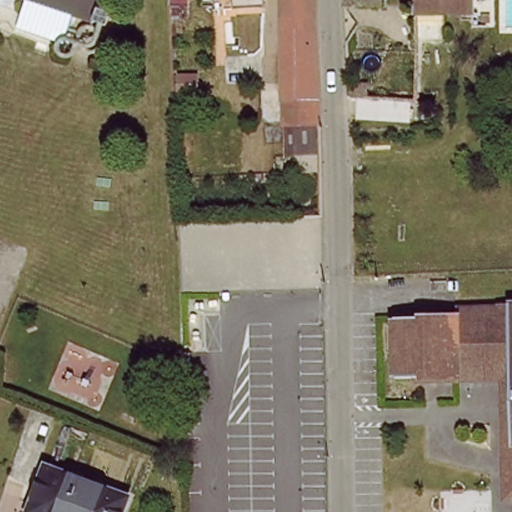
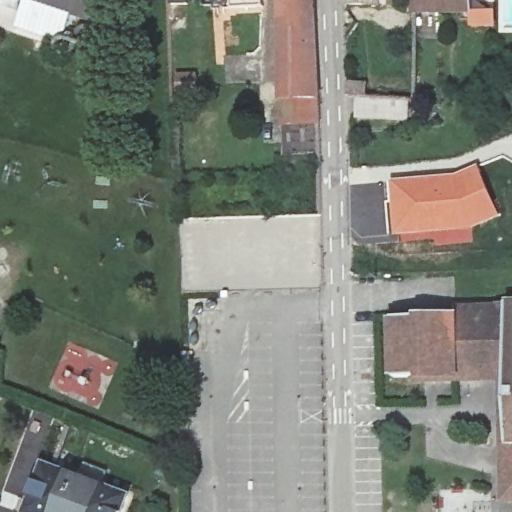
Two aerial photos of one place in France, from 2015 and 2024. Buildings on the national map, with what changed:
unchanged [(1,18),(0,18),(0,0),(87,0),(73,42),(54,36),(1,18)]
unchanged [(282,127),(282,110),(282,0),(309,0),(311,61),(312,126),(282,127)]
unchanged [(381,6),(345,6),(345,0),(381,0),(381,6)]
unchanged [(437,15),(412,13),(412,0),(437,0),(437,15)]
unchanged [(470,15),(437,15),(437,0),(471,0),(470,15)]
demolished [(348,137),(348,124),(340,124),(340,110),(378,110),(378,115),(405,116),(404,124),(396,124),(396,139),(348,137)]
unchanged [(312,126),(314,180),(281,164),(282,127),(312,126)]
new [(454,174),(477,164),(502,216),(472,230),(474,244),(431,247),(430,240),(400,244),(400,236),(390,237),(385,180),(454,174)]
unchanged [(507,301),(512,301),(512,497),(509,497),(507,367),(455,368),(455,377),(393,378),(392,317),(507,313),(507,301)]
unchanged [(120,512),(25,512),(45,466),(127,495),(120,512)]

